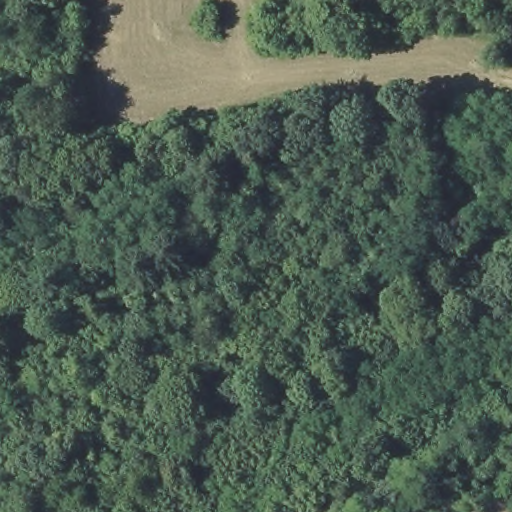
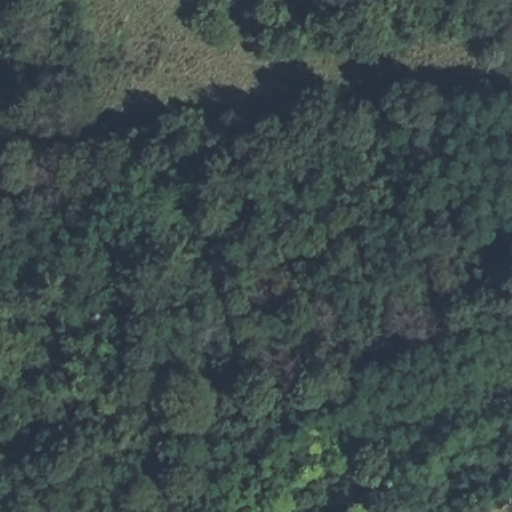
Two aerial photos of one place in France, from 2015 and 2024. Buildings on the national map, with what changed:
[]

